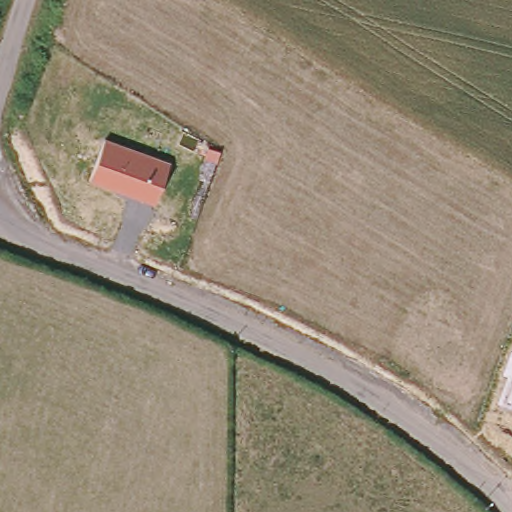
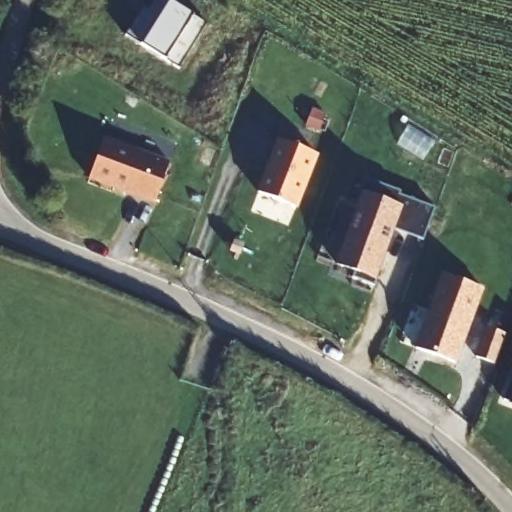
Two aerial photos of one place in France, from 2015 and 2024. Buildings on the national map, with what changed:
new [(181,70),(125,39),(136,18),(138,19),(143,10),(141,9),(142,8),(147,11),(153,0),(166,0),(207,22),(181,70)]
unchanged [(170,162),(155,209),(89,183),(106,140),(170,162)]
new [(277,142),(315,155),(297,209),(259,196),(277,142)]
new [(400,192),(399,196),(435,208),(424,240),(391,229),(375,286),(353,278),(356,270),(338,263),(358,209),(354,207),(365,179),(400,192)]
new [(440,273),(478,288),(451,362),(412,348),(440,273)]
new [(500,332),(490,363),(472,357),(482,326),(500,332)]
unchanged [(509,404),(505,401),(512,381),(512,405),(509,404)]

